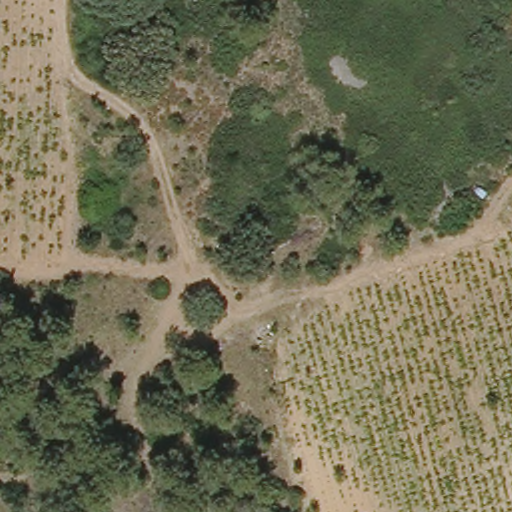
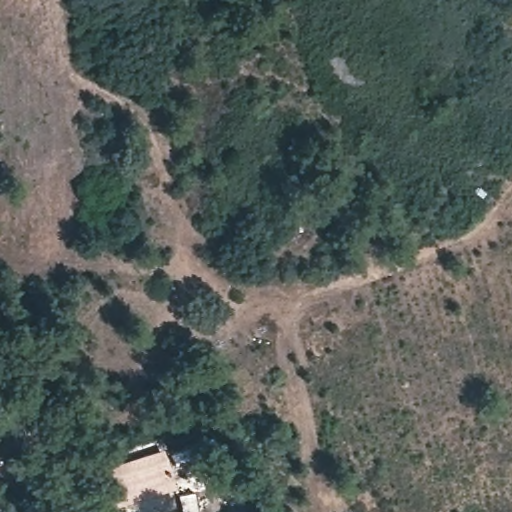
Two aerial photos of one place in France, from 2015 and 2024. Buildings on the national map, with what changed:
new [(115,509),(103,469),(164,449),(177,489),(115,509)]

